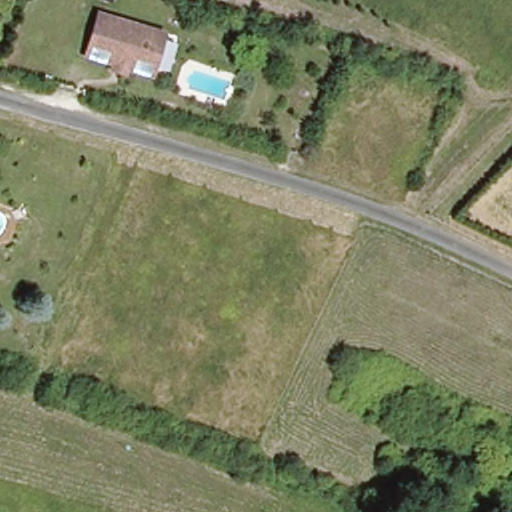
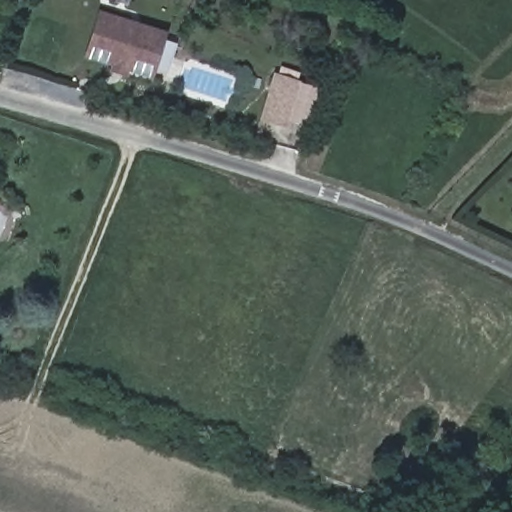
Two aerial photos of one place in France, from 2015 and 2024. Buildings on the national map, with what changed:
unchanged [(158,76),(92,55),(106,13),(172,33),(158,76)]
new [(289,129),(260,120),(275,72),(303,81),(289,129)]

